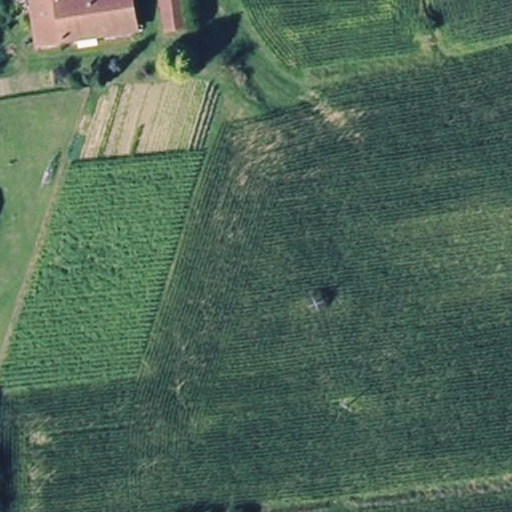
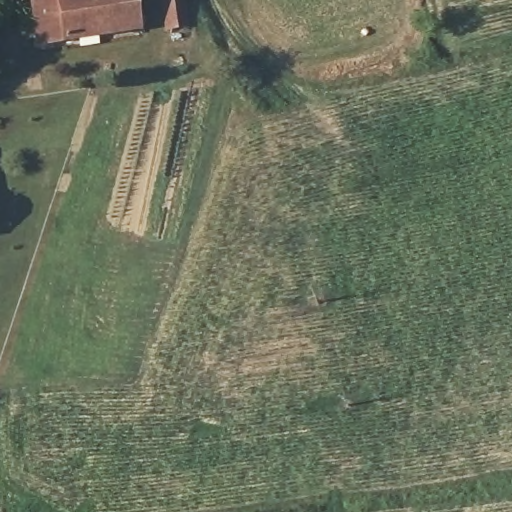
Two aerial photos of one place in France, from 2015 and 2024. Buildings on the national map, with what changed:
unchanged [(162,28),(63,41),(56,0),(157,0),(162,28)]
unchanged [(188,26),(167,29),(163,0),(183,0),(188,26)]

